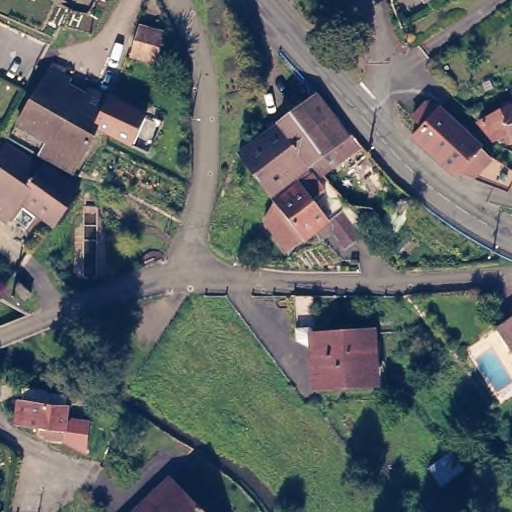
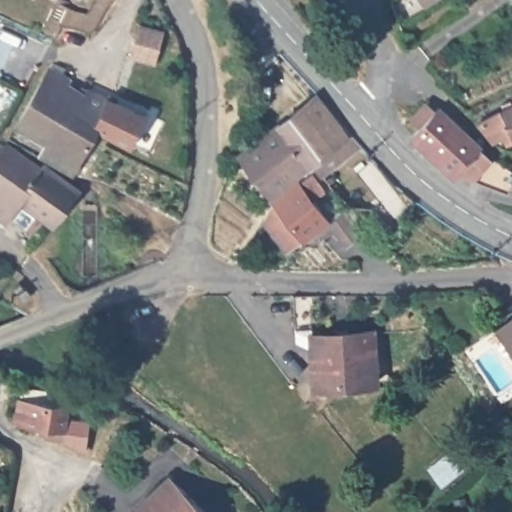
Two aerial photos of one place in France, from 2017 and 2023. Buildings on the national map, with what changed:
unchanged [(158,26),(152,57),(133,53),(139,22),(158,26)]
unchanged [(75,81),(88,86),(77,110),(95,117),(92,122),(95,123),(91,132),(74,169),(45,152),(50,139),(17,120),(45,67),(48,64),(75,81)]
unchanged [(143,109),(132,138),(95,123),(92,122),(95,117),(77,110),(88,86),(111,95),(143,109)]
unchanged [(502,136),(487,142),(477,120),(493,110),(505,105),(501,94),(512,89),(512,140),(505,143),(502,136)]
unchanged [(310,95),(343,137),(307,166),(267,199),(233,157),(307,97),(310,95)]
unchanged [(417,95),(420,99),(424,102),(430,97),(470,135),(503,162),(493,179),(447,161),(442,165),(400,125),(407,116),(403,111),(417,95)]
unchanged [(30,206),(25,212),(0,194),(0,150),(7,140),(42,164),(43,161),(78,185),(53,221),(30,206)]
unchanged [(329,229),(318,237),(314,232),(300,243),(295,236),(291,239),(282,227),(286,225),(273,207),(270,204),(295,183),(297,186),(309,176),(320,190),(308,199),(325,221),(337,211),(350,229),(355,236),(342,247),(338,242),(329,229)]
unchanged [(322,297),(325,335),(315,335),(308,336),(305,298),(312,298),(322,297)]
unchanged [(512,312),(512,349),(495,323),(512,312)]
unchanged [(325,333),(383,330),(386,380),(328,383),(325,333)]
unchanged [(40,424),(19,422),(22,396),(67,400),(65,426),(63,426),(62,433),(38,431),(40,424)]
unchanged [(170,469),(212,512),(128,512),(170,469)]

